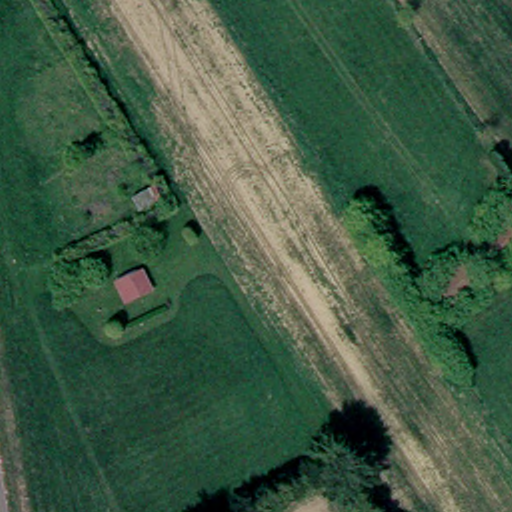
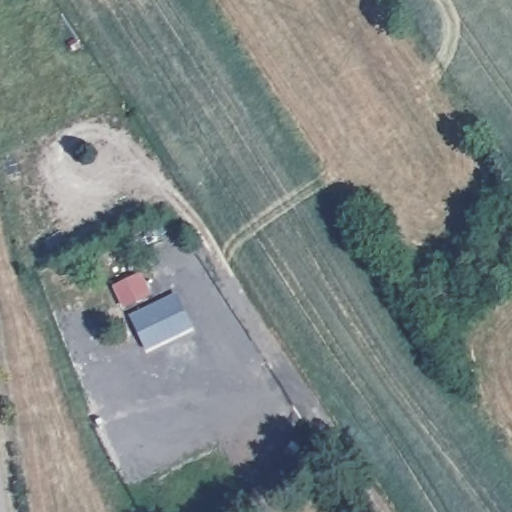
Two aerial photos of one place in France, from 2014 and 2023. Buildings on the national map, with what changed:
unchanged [(484,233),(509,210),(512,213),(512,225),(492,243),(484,233)]
unchanged [(480,274),(450,302),(440,292),(470,265),(480,274)]
unchanged [(121,304),(111,289),(141,275),(150,293),(121,304)]
new [(177,292),(195,327),(147,351),(130,315),(177,292)]

